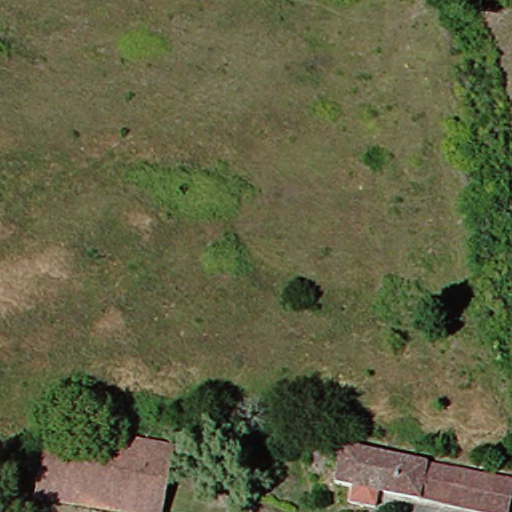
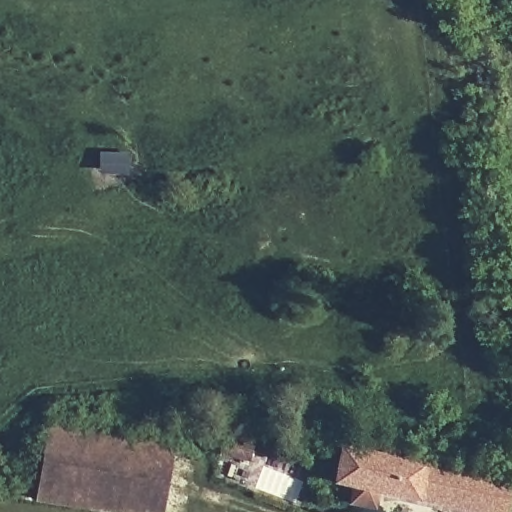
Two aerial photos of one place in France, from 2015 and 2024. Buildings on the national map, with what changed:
unchanged [(26,496),(48,424),(117,444),(99,512),(84,512),(30,497),(26,496)]
unchanged [(165,457),(149,512),(99,512),(117,444),(165,457)]
unchanged [(189,459),(192,446),(219,452),(217,466),(189,459)]
unchanged [(333,484),(342,450),(506,486),(502,512),(445,512),(333,484)]

